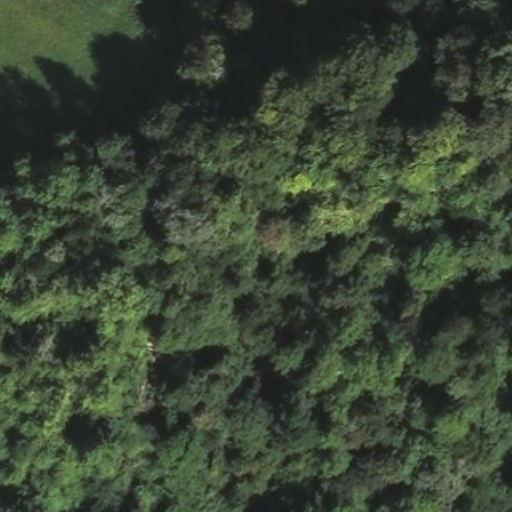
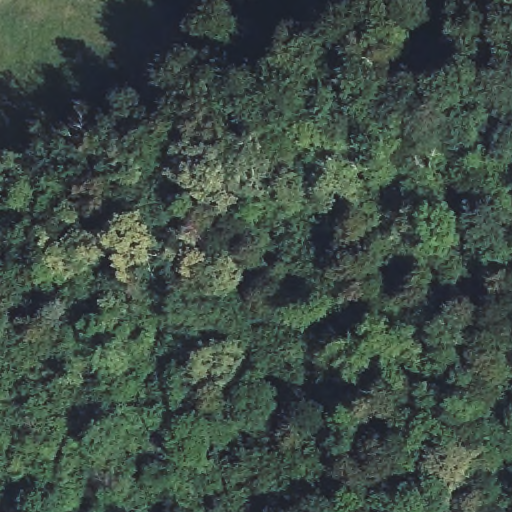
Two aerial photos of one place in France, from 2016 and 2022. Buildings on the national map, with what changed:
[]

